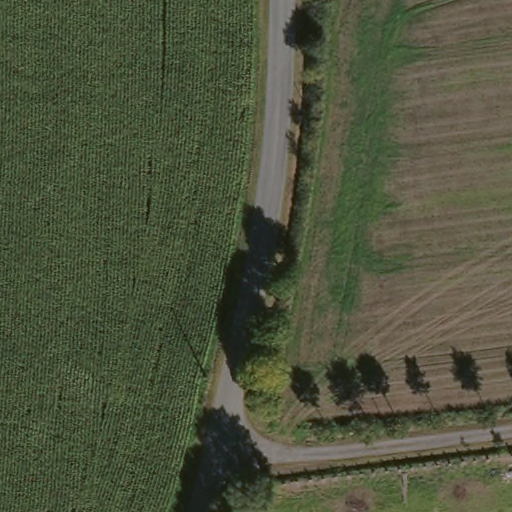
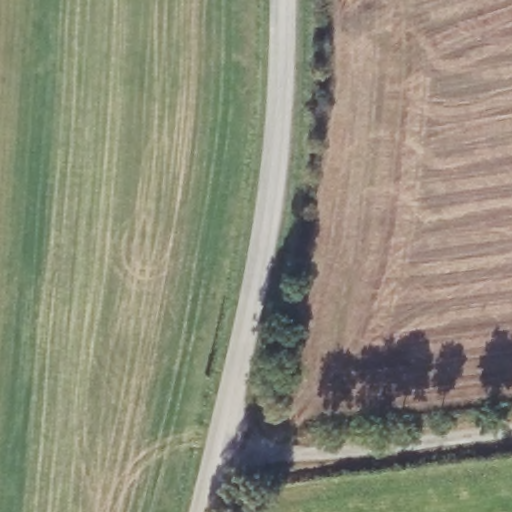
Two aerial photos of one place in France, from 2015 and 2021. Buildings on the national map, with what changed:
[]

